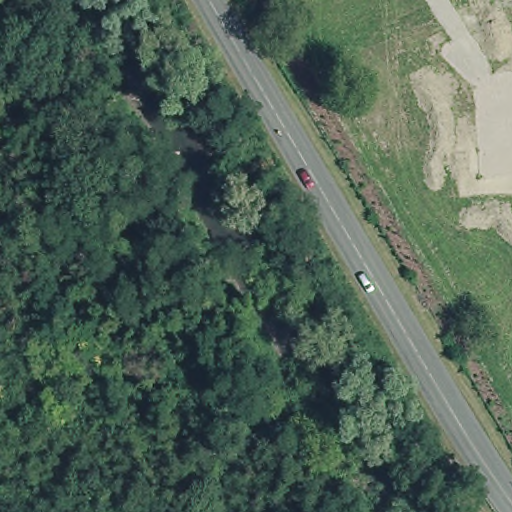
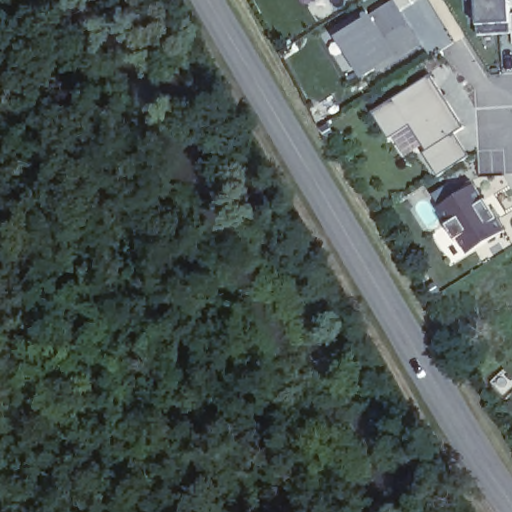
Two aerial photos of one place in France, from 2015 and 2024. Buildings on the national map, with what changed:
new [(313,0),(318,0),(314,2),(313,0)]
new [(338,39),(373,17),(394,2),(392,0),(419,0),(402,11),(423,44),(365,83),(338,39)]
new [(479,22),(477,0),(511,0),(512,14),(512,34),(479,35),(479,22)]
demolished [(455,125),(410,127),(404,22),(448,21),(455,125)]
new [(430,150),(410,120),(387,134),(373,112),(430,76),(464,127),(430,150)]
new [(468,257),(437,210),(476,184),(507,231),(468,257)]
demolished [(470,227),(451,235),(446,223),(465,215),(470,227)]

